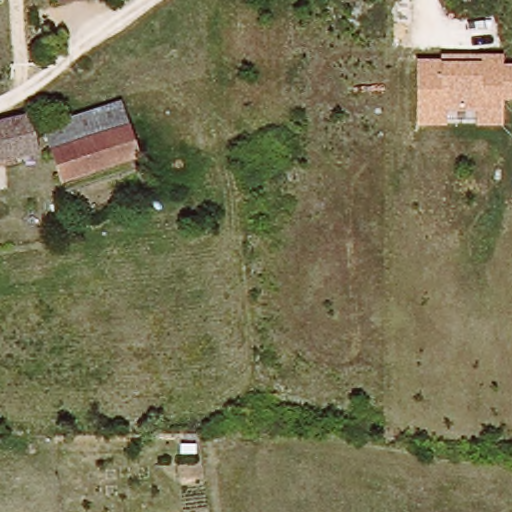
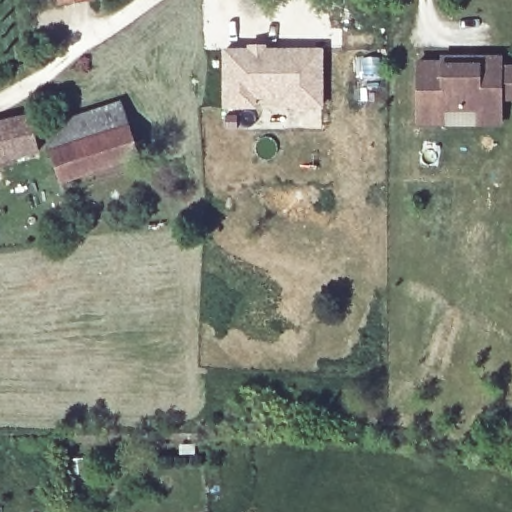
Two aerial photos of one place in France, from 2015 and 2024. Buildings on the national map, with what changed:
demolished [(0,39),(0,0),(15,0),(22,35),(0,39)]
unchanged [(61,5),(60,0),(90,0),(90,1),(61,5)]
new [(281,98),(256,97),(256,107),(250,107),(226,106),(227,49),(324,50),(324,107),(286,107),(280,107),(281,98)]
unchanged [(439,55),(502,55),(502,66),(512,65),(512,101),(503,101),(503,128),(475,127),(476,111),(446,112),(445,127),(417,127),(416,62),(439,61),(439,55)]
unchanged [(49,132),(114,107),(136,155),(68,183),(49,132)]
unchanged [(34,115),(43,153),(0,163),(0,122),(34,115)]

